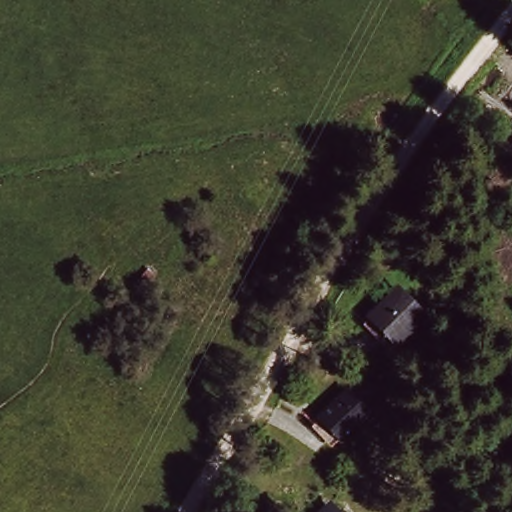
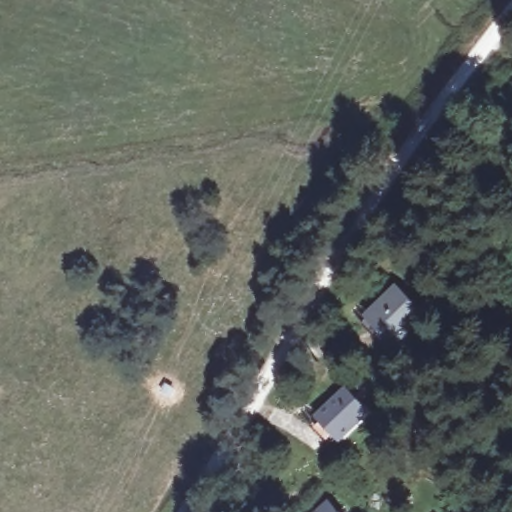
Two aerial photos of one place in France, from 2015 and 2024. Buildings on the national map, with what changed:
unchanged [(402,289),(421,312),(391,337),(371,315),(402,289)]
unchanged [(353,392),(369,409),(336,438),(321,418),(353,392)]
unchanged [(344,505),(350,512),(336,512),(344,505)]

